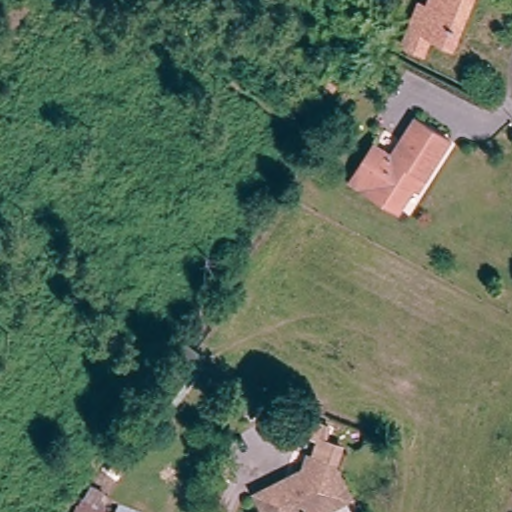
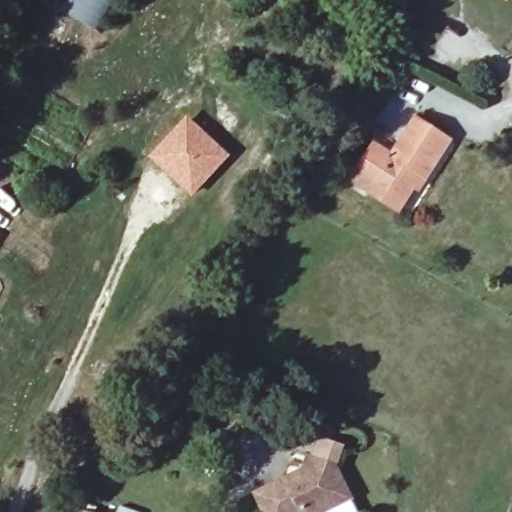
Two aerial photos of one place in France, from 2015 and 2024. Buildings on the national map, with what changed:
new [(109,0),(98,19),(87,24),(62,10),(68,0),(109,0)]
demolished [(427,36),(418,53),(401,47),(417,6),(425,7),(428,0),(465,0),(447,44),(427,36)]
new [(501,0),(509,0),(507,3),(501,0)]
new [(187,115),(231,155),(192,199),(147,157),(187,115)]
unchanged [(367,192),(346,173),(373,141),(389,155),(418,122),(447,147),(419,181),(416,177),(393,204),(387,210),(367,192)]
unchanged [(301,472),(307,453),(312,452),(317,441),(309,437),(316,418),(336,424),(329,437),(348,443),(340,465),(357,498),(330,512),(261,512),(251,492),(301,472)]

